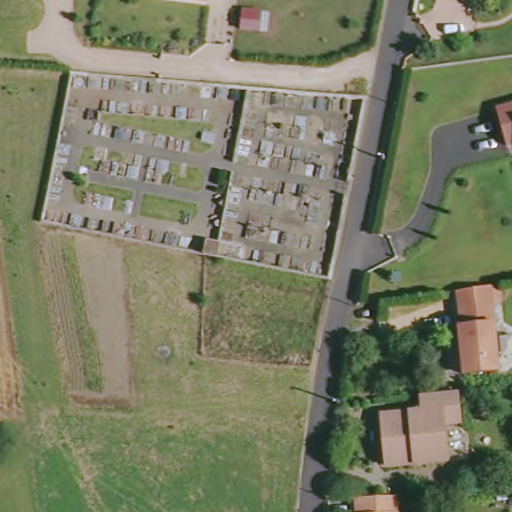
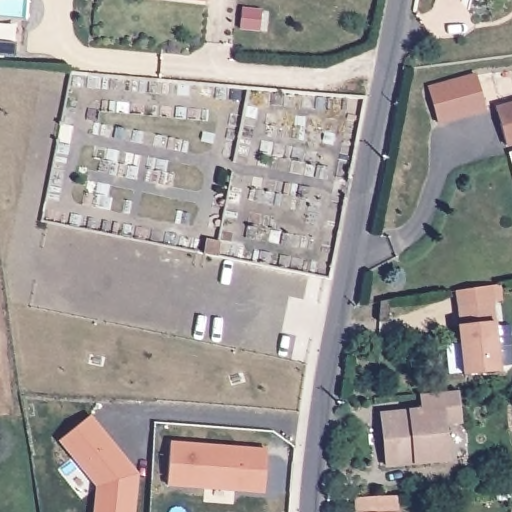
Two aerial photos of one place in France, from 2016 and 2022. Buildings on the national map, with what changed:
unchanged [(200,0),(206,0),(206,1),(200,0)]
new [(427,85),(475,73),(487,112),(439,125),(427,85)]
unchanged [(505,139),(497,103),(512,99),(512,137),(505,139)]
unchanged [(499,366),(464,368),(459,320),(460,320),(457,285),(465,284),(490,280),(499,366)]
unchanged [(457,386),(460,417),(444,418),(447,455),(385,460),(382,410),(423,406),(420,389),(457,386)]
new [(137,475),(133,512),(94,512),(97,487),(60,441),(90,417),(137,475)]
new [(170,443),(268,450),(265,488),(205,484),(204,487),(167,485),(170,443)]
unchanged [(352,510),(351,492),(372,492),(390,491),(392,512),(349,512),(349,511),(352,510)]

